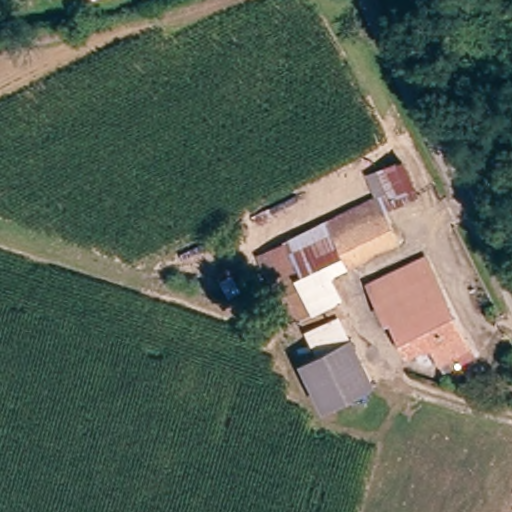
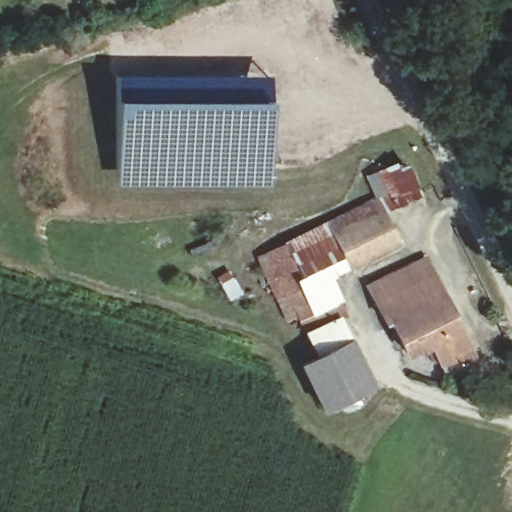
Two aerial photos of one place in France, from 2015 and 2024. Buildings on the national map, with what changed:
new [(113,74),(267,71),(268,97),(231,98),(113,96),(113,74)]
new [(231,98),(268,97),(266,184),(116,182),(113,96),(231,98)]
unchanged [(312,356),(298,323),(285,326),(270,278),(259,280),(252,253),(369,195),(363,172),(401,156),(418,193),(382,210),(396,240),(330,274),(346,312),(340,317),(371,379),(315,412),(296,364),(312,356)]
unchanged [(424,254),(473,352),(457,361),(450,352),(438,358),(430,343),(411,354),(393,318),(387,322),(367,283),(424,254)]

